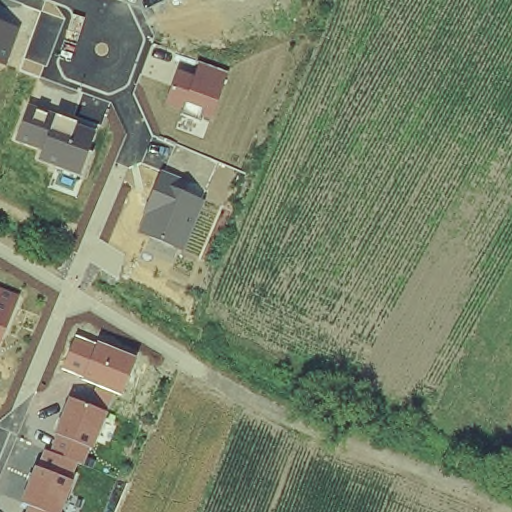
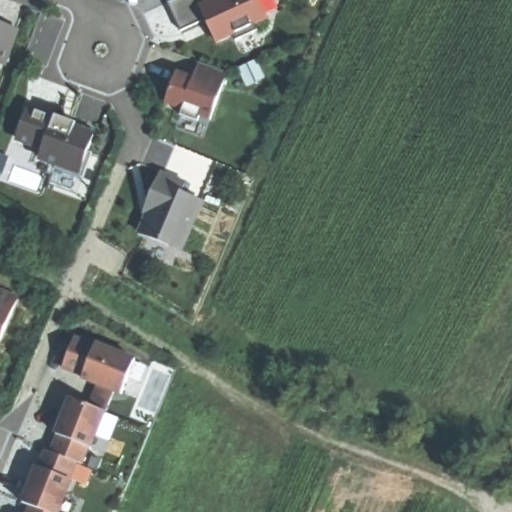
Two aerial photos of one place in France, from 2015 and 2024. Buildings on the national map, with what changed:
new [(171,0),(210,0),(210,1),(212,0),(259,0),(267,19),(255,25),(257,30),(236,40),(233,35),(217,41),(206,19),(180,31),(167,2),(171,0)]
unchanged [(0,64),(0,21),(20,29),(7,66),(0,64)]
unchanged [(194,77),(200,64),(229,74),(213,120),(202,116),(200,121),(165,107),(179,71),(194,77)]
unchanged [(97,130),(89,150),(94,152),(85,177),(39,160),(42,151),(16,141),(30,105),(97,130)]
unchanged [(187,180),(182,192),(205,200),(185,251),(137,234),(162,171),(187,180)]
unchanged [(0,344),(0,287),(20,295),(0,344)]
unchanged [(99,342),(137,359),(122,395),(116,392),(94,448),(91,447),(84,465),(79,463),(73,480),(61,512),(25,512),(28,505),(22,501),(36,467),(39,468),(46,450),(51,452),(58,434),(56,433),(70,398),(89,406),(97,385),(83,380),(84,378),(63,369),(77,337),(98,345),(99,342)]

